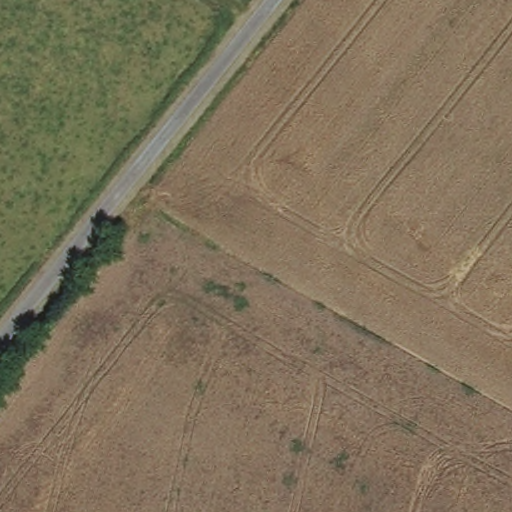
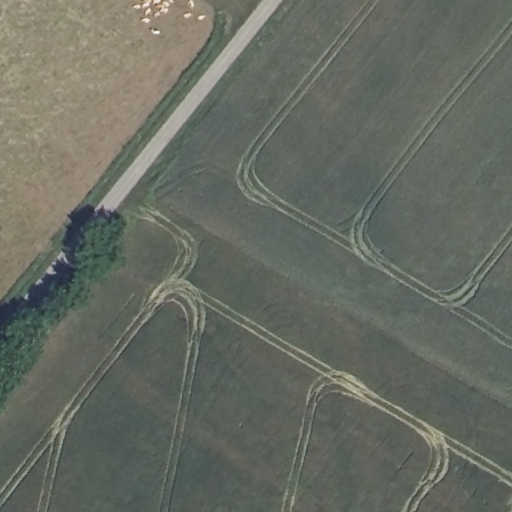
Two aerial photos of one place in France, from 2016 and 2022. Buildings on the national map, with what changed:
[]

